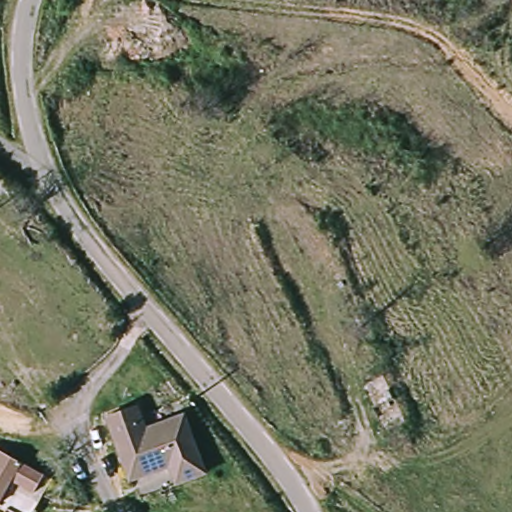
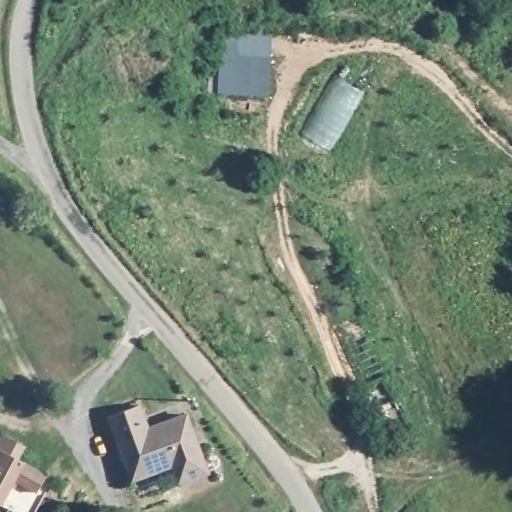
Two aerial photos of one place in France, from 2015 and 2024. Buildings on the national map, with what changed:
new [(272,30),(270,95),(217,94),(221,29),(272,30)]
new [(364,91),(329,150),(302,134),(339,75),(364,91)]
unchanged [(155,443),(197,430),(219,496),(187,507),(180,483),(141,496),(121,435),(149,426),(155,443)]
unchanged [(0,451),(51,475),(42,494),(17,482),(6,506),(0,503),(0,451)]

